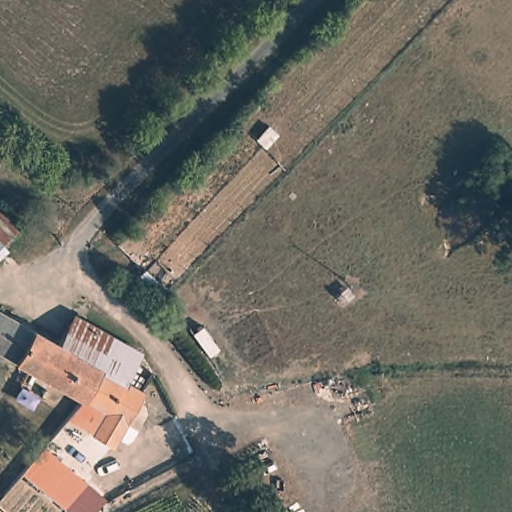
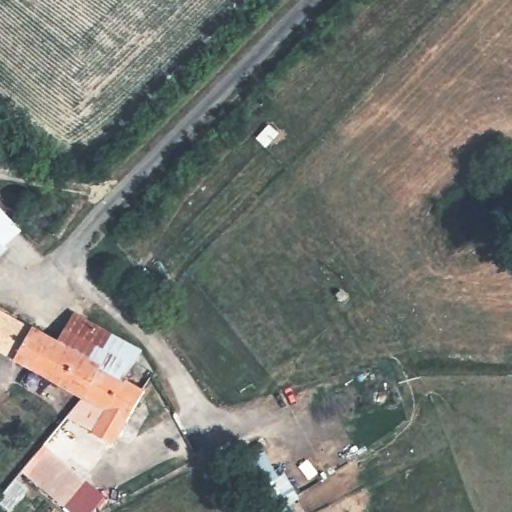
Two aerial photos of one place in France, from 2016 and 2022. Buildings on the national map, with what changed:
unchanged [(17,239),(0,256),(0,222),(17,239)]
unchanged [(0,359),(0,312),(51,342),(73,312),(146,357),(126,382),(109,372),(81,413),(0,359)]
unchanged [(109,372),(126,382),(155,399),(111,460),(84,439),(95,422),(81,413),(109,372)]
unchanged [(63,430),(77,441),(47,478),(74,508),(70,512),(9,512),(0,502),(63,430)]

